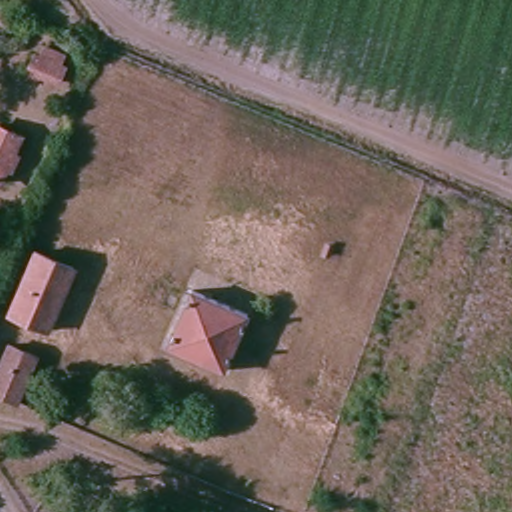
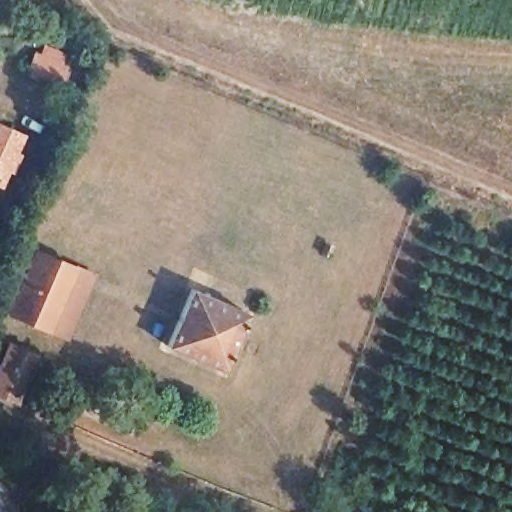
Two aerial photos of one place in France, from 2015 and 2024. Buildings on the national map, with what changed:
unchanged [(22,134),(0,187),(0,127),(22,134)]
unchanged [(43,326),(7,310),(31,250),(69,267),(43,326)]
unchanged [(220,366),(167,341),(188,290),(242,312),(220,366)]
unchanged [(5,397),(0,396),(0,347),(21,356),(5,397)]
unchanged [(60,420),(29,407),(45,370),(76,383),(60,420)]

